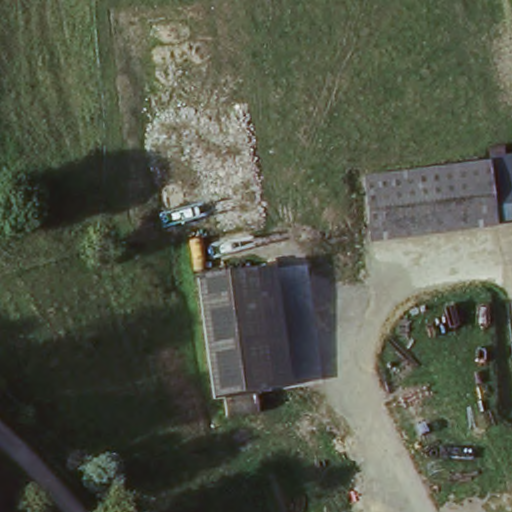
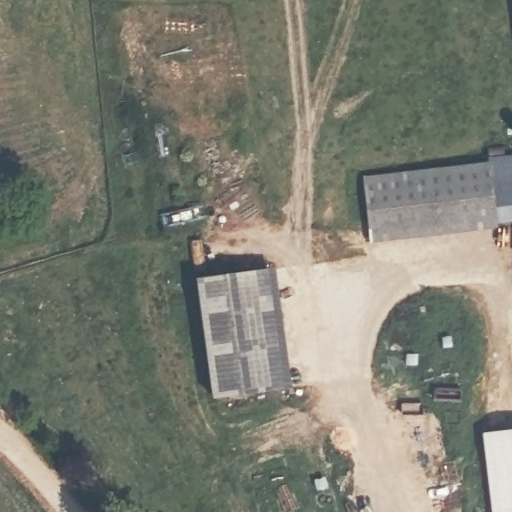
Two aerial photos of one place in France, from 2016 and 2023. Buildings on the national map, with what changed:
unchanged [(500,223),(501,228),(368,245),(361,178),(490,163),(490,158),(512,156),(512,222),(500,223)]
unchanged [(276,270),(292,390),(213,401),(197,280),(276,270)]
new [(485,512),(476,433),(512,431),(512,512),(485,512)]

